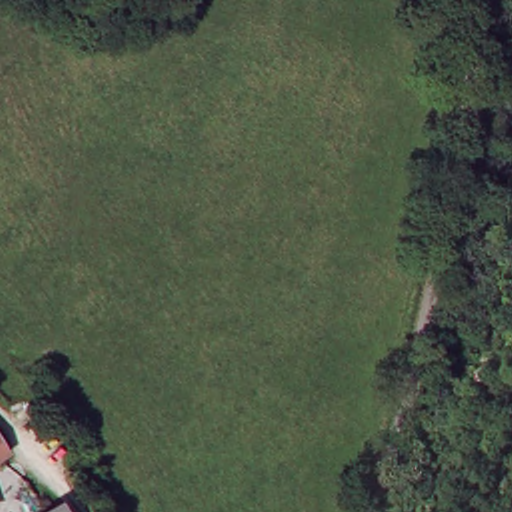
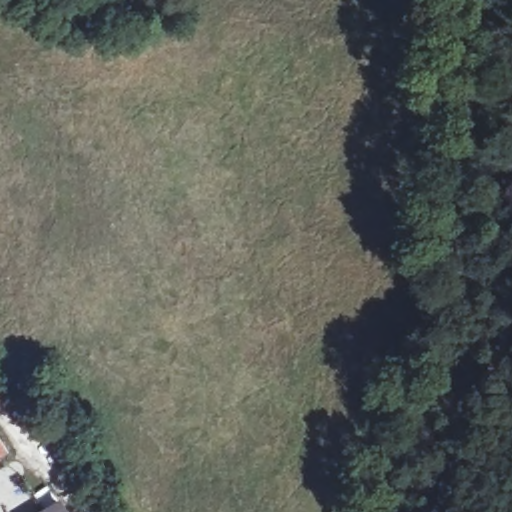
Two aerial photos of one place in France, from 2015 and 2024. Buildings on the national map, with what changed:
unchanged [(0,462),(0,443),(7,457),(0,462)]
unchanged [(62,510),(64,512),(59,512),(62,510)]

